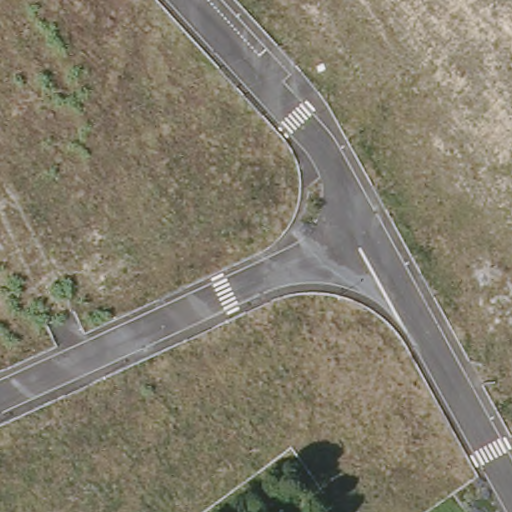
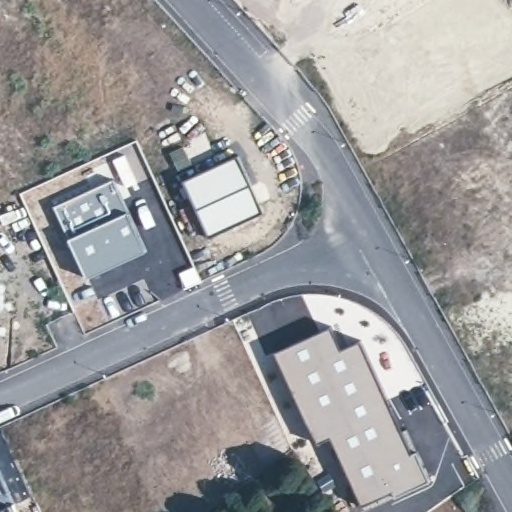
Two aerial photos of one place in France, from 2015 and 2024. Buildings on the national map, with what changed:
new [(236,156),(262,211),(209,235),(184,181),(236,156)]
new [(111,179),(114,179),(148,251),(87,278),(53,205),(111,179)]
new [(331,327),(341,349),(362,341),(412,451),(416,450),(431,480),(395,497),(393,492),(363,505),(331,436),(318,441),(274,352),(331,327)]
new [(14,512),(0,512),(0,508),(10,503),(14,512)]

